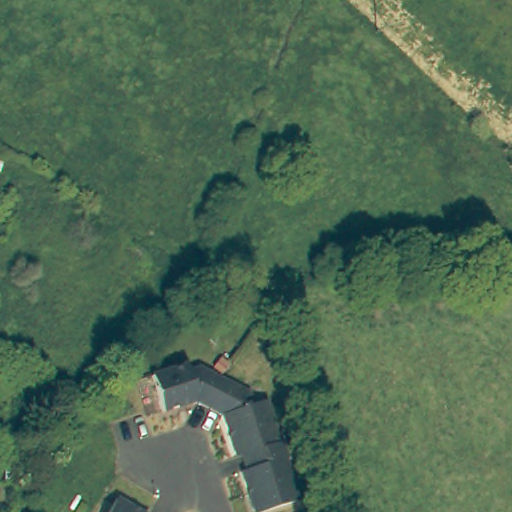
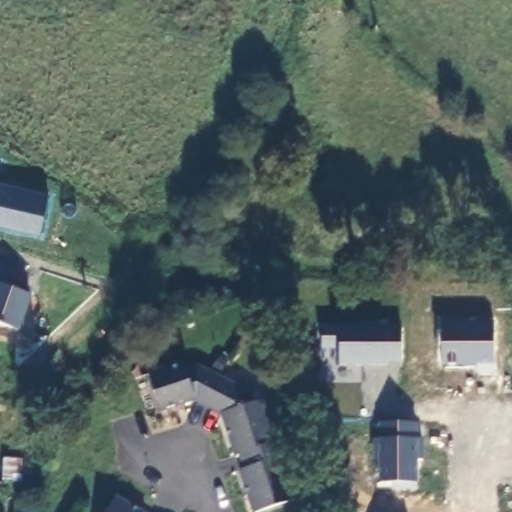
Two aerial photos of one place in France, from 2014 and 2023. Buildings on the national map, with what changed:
new [(50,192),(41,229),(0,219),(0,181),(50,192)]
new [(31,293),(19,329),(0,322),(0,283),(31,293)]
new [(441,324),(493,323),(493,372),(476,373),(476,365),(441,365),(441,324)]
new [(321,327),(339,327),(339,326),(385,326),(385,327),(401,327),(401,362),(385,362),(385,365),(339,365),(339,348),(321,348),(321,327)]
unchanged [(240,461),(236,447),(233,448),(219,407),(217,404),(190,391),(189,393),(159,402),(147,367),(181,357),(184,367),(195,363),(246,386),(249,394),(260,391),(274,434),(277,433),(282,448),(279,450),(292,491),(251,503),(237,462),(240,461)]
new [(379,439),(384,439),(384,422),(420,423),(420,439),(426,439),(426,460),(420,459),(420,488),(398,488),(398,483),(384,482),(384,461),(379,460),(379,439)]
unchanged [(148,512),(108,512),(117,496),(148,512)]

